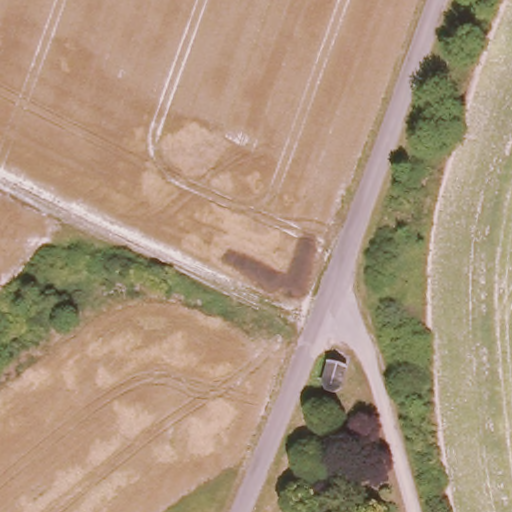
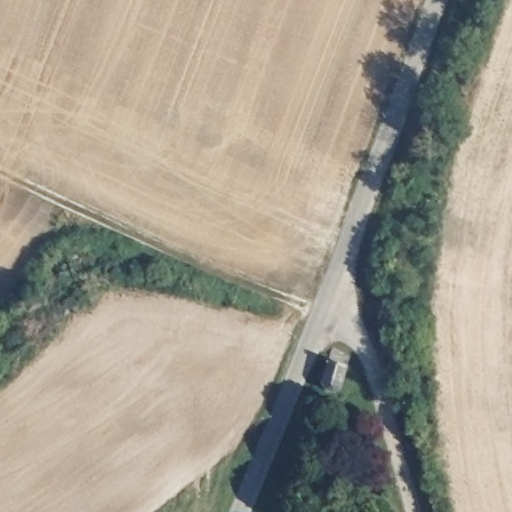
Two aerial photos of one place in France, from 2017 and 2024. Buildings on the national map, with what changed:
unchanged [(326,356),(347,364),(338,391),(316,385),(326,356)]

